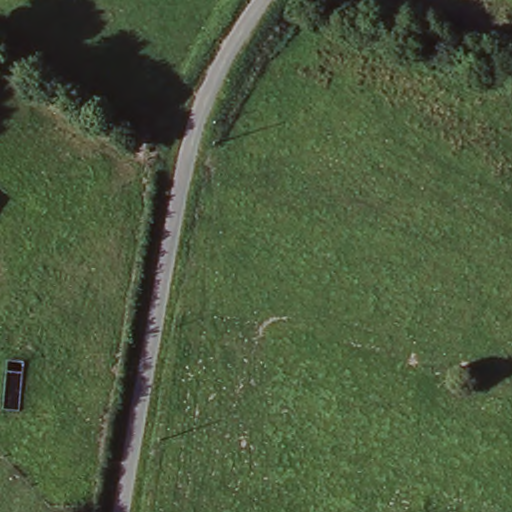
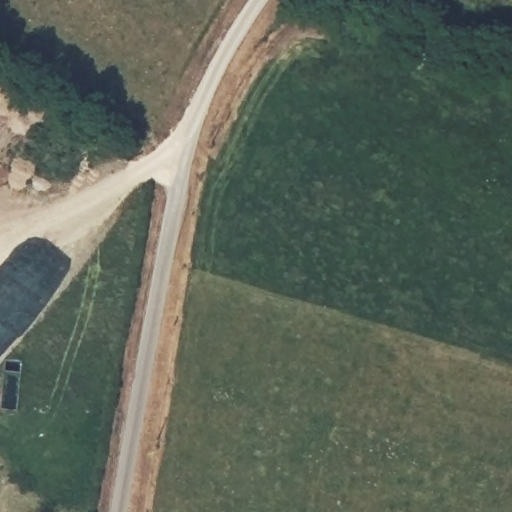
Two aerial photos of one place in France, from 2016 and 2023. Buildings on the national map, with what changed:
[]

